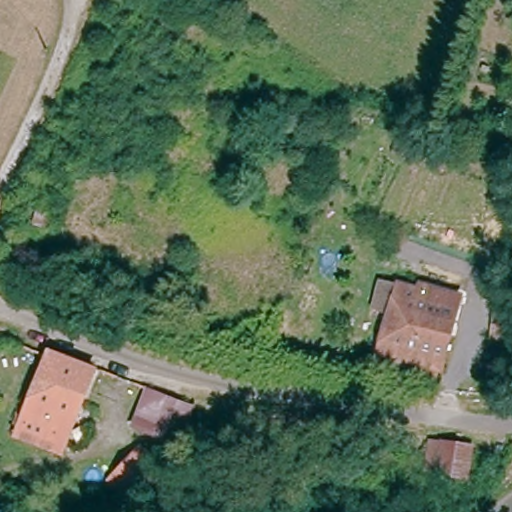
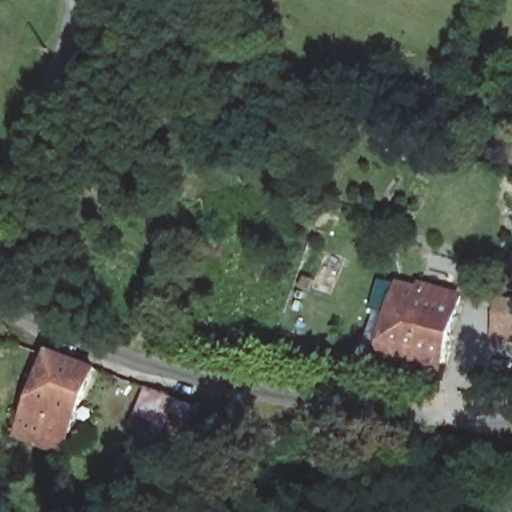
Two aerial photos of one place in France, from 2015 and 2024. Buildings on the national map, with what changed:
unchanged [(380,357),(391,320),(391,317),(374,313),(381,283),(397,286),(418,291),(419,287),(434,290),(461,297),(446,370),(380,357)]
unchanged [(500,302),(512,303),(512,343),(495,341),(500,302)]
unchanged [(44,353),(89,372),(60,450),(16,436),(44,353)]
unchanged [(143,432),(155,397),(181,407),(170,440),(143,432)]
unchanged [(467,438),(459,470),(435,463),(443,432),(467,438)]
unchanged [(110,479),(132,454),(141,446),(152,457),(165,467),(157,476),(133,501),(110,479)]

